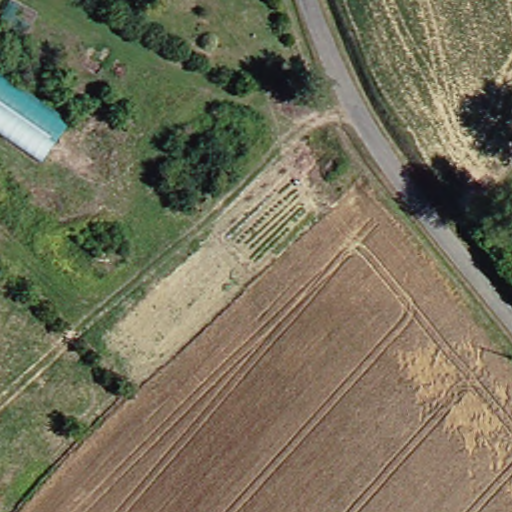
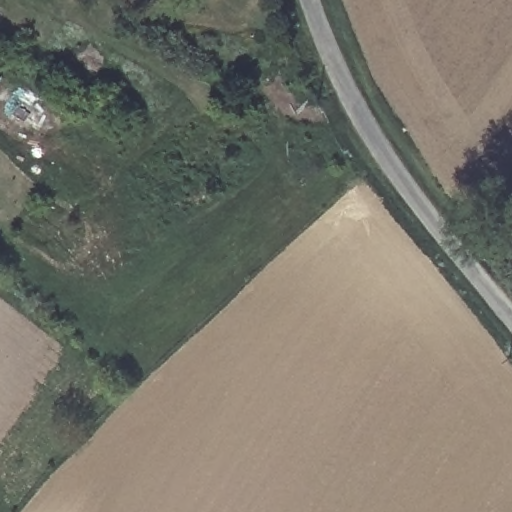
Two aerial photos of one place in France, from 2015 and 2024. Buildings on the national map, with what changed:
demolished [(35,157),(0,133),(0,91),(55,128),(35,157)]

